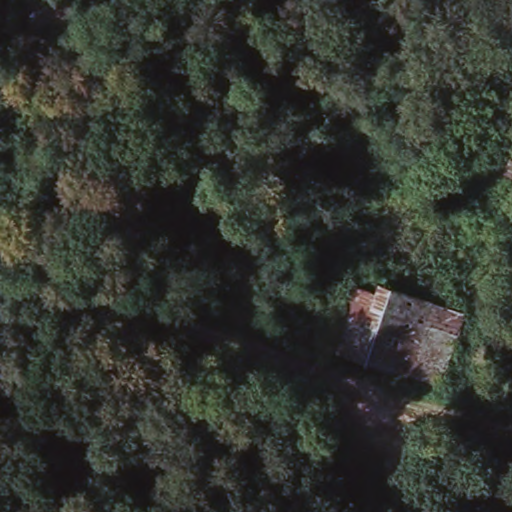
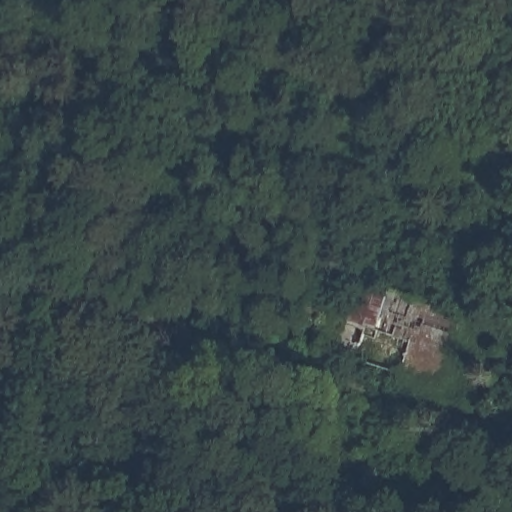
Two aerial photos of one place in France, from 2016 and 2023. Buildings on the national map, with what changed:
unchanged [(85,48),(0,29),(0,0),(92,0),(85,48)]
unchanged [(444,389),(334,360),(362,283),(464,321),(444,389)]

